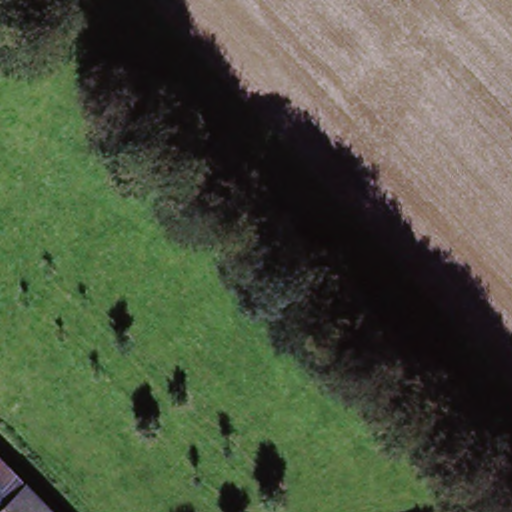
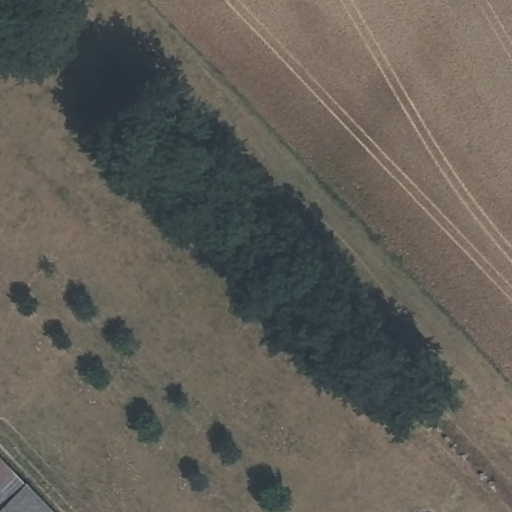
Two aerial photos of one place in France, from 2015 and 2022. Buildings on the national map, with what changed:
unchanged [(0,494),(0,467),(13,482),(0,494)]
unchanged [(44,512),(0,512),(0,494),(13,482),(44,512)]

